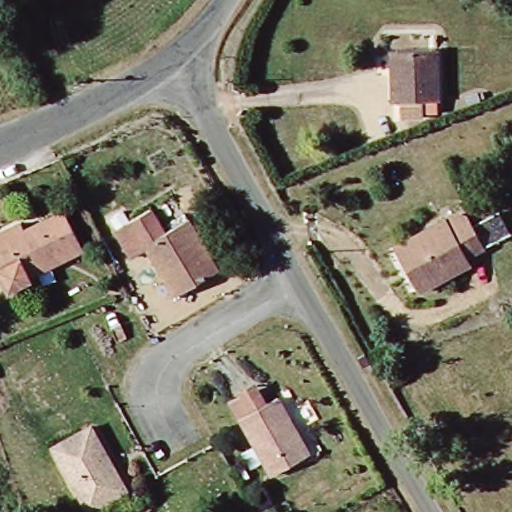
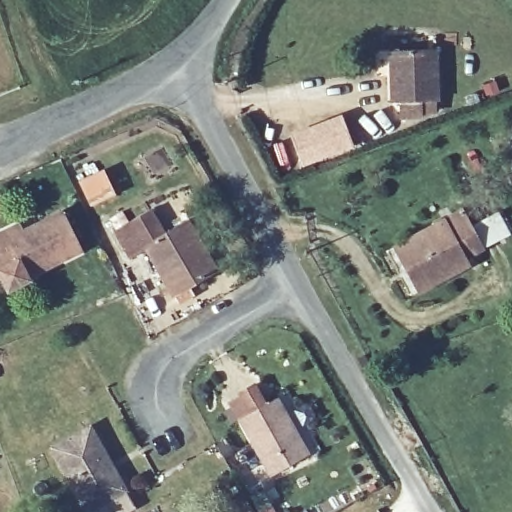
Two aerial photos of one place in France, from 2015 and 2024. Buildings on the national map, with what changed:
unchanged [(395,105),(396,82),(386,83),(385,54),(429,53),(431,103),(395,105)]
new [(355,146),(303,166),(291,136),(342,115),(355,146)]
unchanged [(18,223),(22,231),(61,210),(82,249),(64,259),(62,254),(22,274),(26,282),(6,292),(0,278),(0,232),(18,223)]
unchanged [(163,232),(187,219),(197,236),(189,240),(209,273),(175,294),(147,249),(131,258),(115,230),(150,210),(163,232)]
unchanged [(466,258),(469,264),(420,291),(397,248),(464,212),(484,248),(466,258)]
unchanged [(310,455),(272,477),(240,420),(230,401),(256,386),(266,405),(278,398),(310,455)]
unchanged [(122,489),(85,510),(49,447),(86,425),(122,489)]

